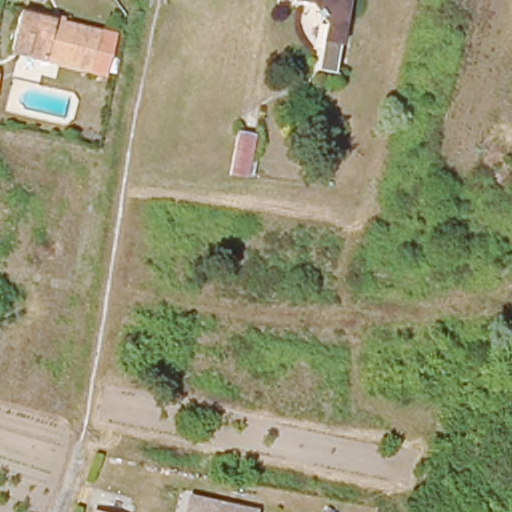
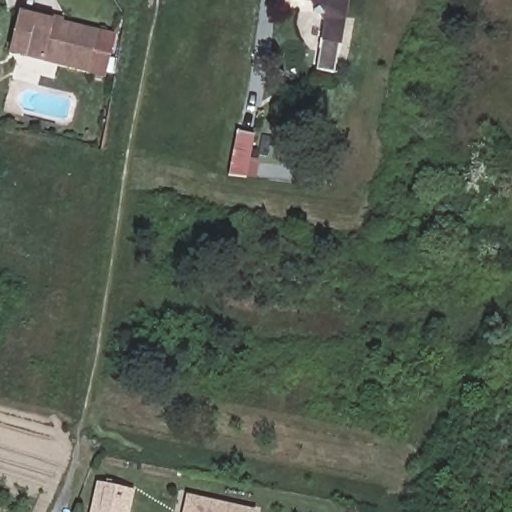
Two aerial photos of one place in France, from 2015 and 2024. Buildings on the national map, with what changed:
unchanged [(317,65),(326,20),(315,0),(348,0),(335,69),(317,65)]
unchanged [(17,45),(27,7),(104,27),(96,65),(17,45)]
unchanged [(240,124),(259,128),(251,174),(231,172),(240,124)]
new [(104,482),(131,489),(125,512),(97,512),(104,482)]
unchanged [(250,512),(179,512),(182,496),(250,512)]

